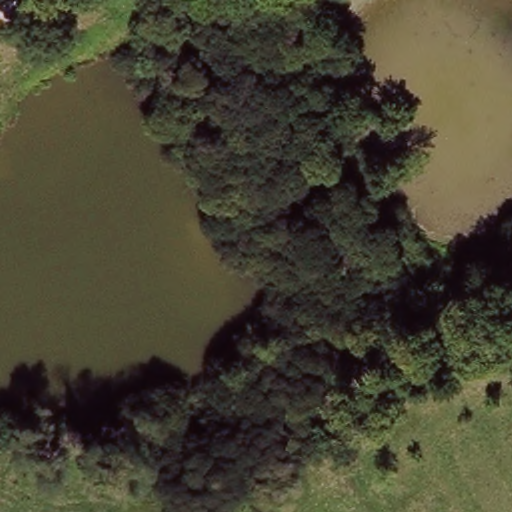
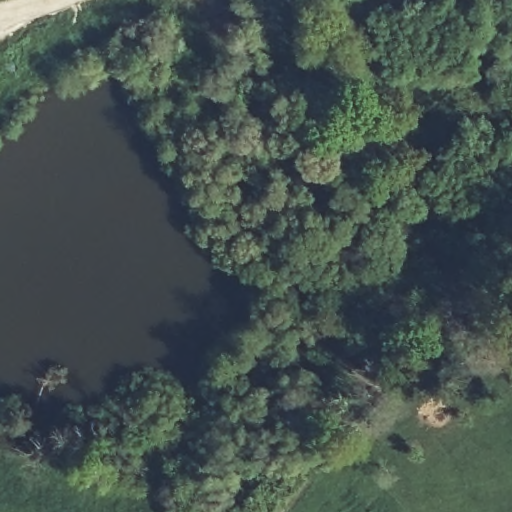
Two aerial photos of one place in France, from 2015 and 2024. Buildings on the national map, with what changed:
[]

